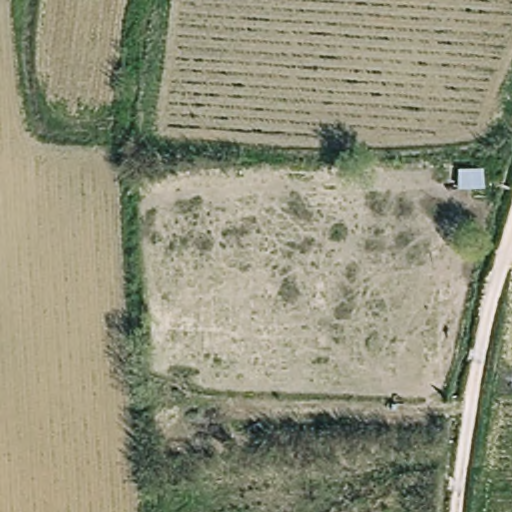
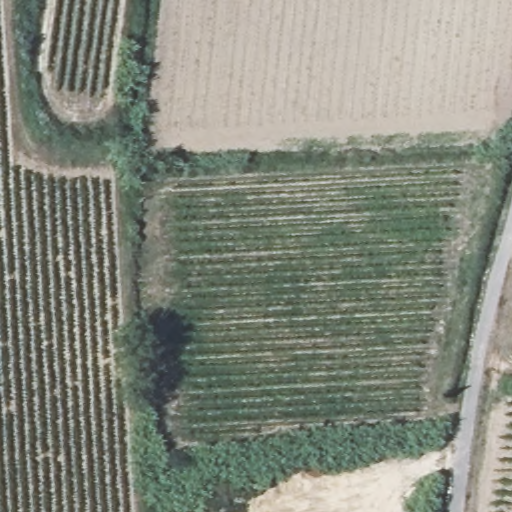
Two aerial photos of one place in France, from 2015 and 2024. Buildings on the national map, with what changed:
[]

